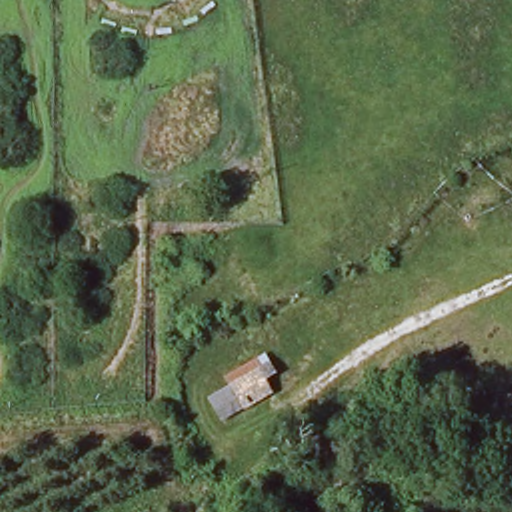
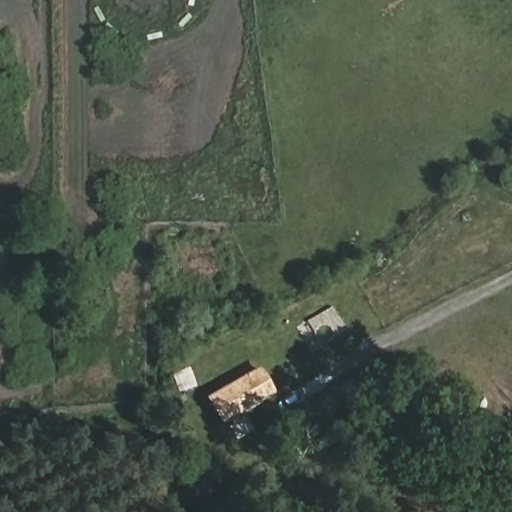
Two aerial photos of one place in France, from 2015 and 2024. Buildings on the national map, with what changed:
unchanged [(274,373),(261,383),(273,396),(220,421),(207,401),(229,389),(224,376),(261,355),(274,373)]

